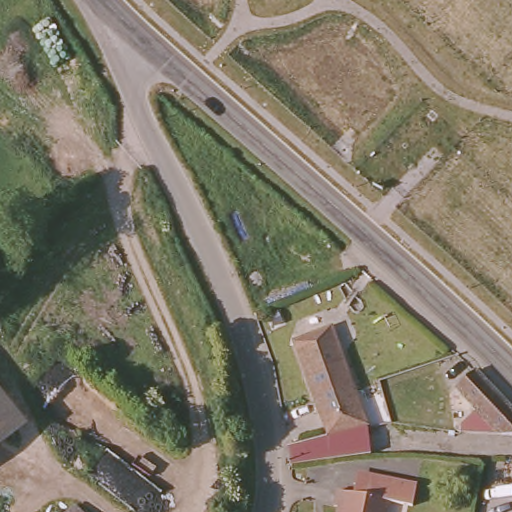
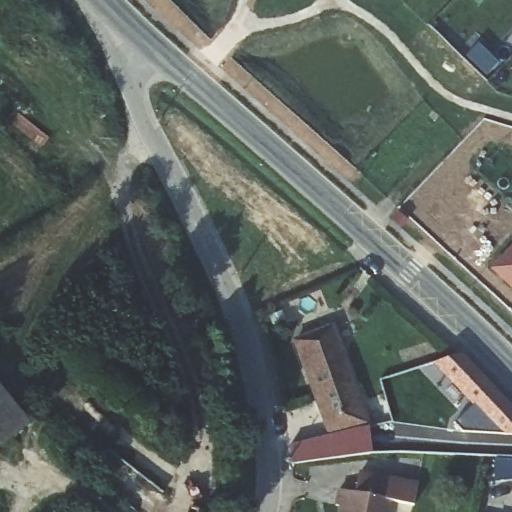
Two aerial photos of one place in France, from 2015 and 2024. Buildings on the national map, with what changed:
new [(490,268),(512,245),(512,290),(490,268)]
unchanged [(366,434),(371,455),(292,465),(288,443),(328,437),(329,440),(305,368),(298,346),(321,339),(335,334),(351,385),(365,428),(366,434)]
unchanged [(468,364),(473,369),(475,371),(512,411),(512,430),(457,428),(458,415),(470,404),(449,382),(468,364)]
unchanged [(0,448),(0,398),(25,426),(0,448)]
unchanged [(359,471),(416,484),(413,505),(395,502),(365,496),(356,494),(359,471)]
unchanged [(394,512),(349,512),(350,510),(340,508),(344,492),(395,502),(394,512)]

